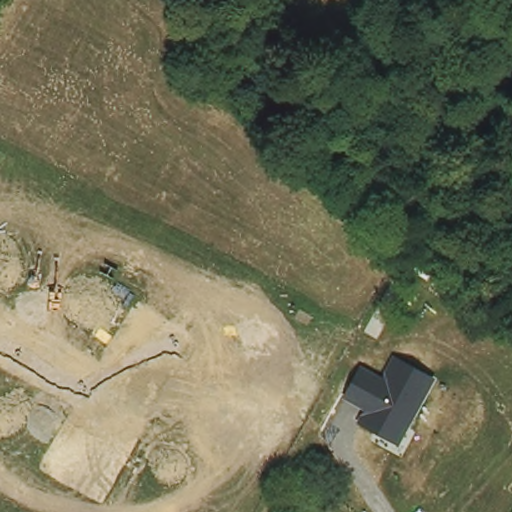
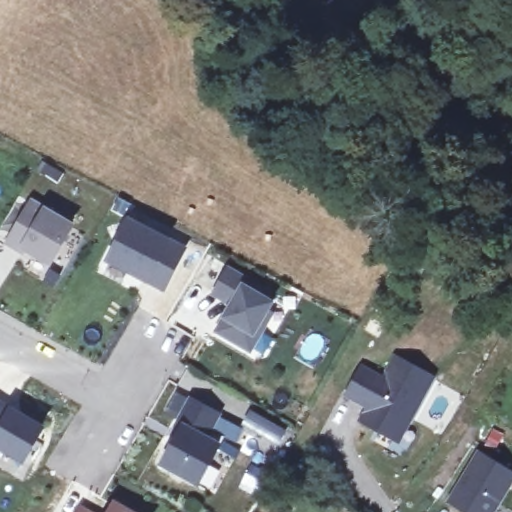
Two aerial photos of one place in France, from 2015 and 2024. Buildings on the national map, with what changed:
new [(35,210),(75,234),(54,270),(28,255),(26,258),(12,250),(35,210)]
new [(112,267),(131,230),(188,259),(168,297),(142,283),(135,280),(112,267)]
new [(227,269),(272,295),(264,311),(269,314),(249,349),(217,331),(232,305),(214,293),(227,269)]
unchanged [(400,443),(360,422),(368,410),(347,399),(365,365),(385,375),(397,355),(436,376),(400,443)]
new [(160,466),(184,423),(177,419),(190,395),(219,415),(206,436),(217,443),(195,483),(160,466)]
new [(42,428),(22,467),(0,454),(0,418),(7,406),(42,428)]
new [(512,479),(512,480),(494,512),(461,512),(450,506),(477,458),(512,479)]
new [(117,510),(120,512),(116,512),(117,510)]

